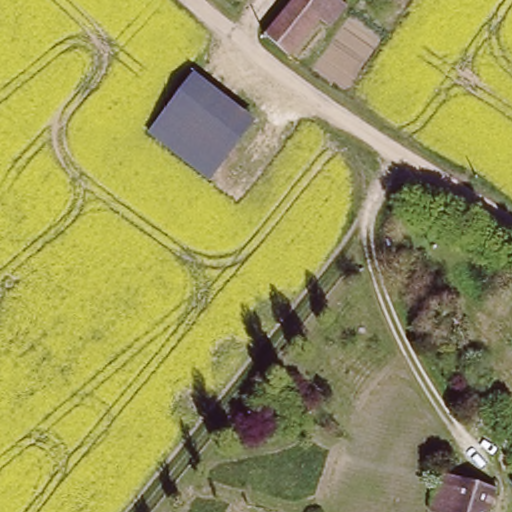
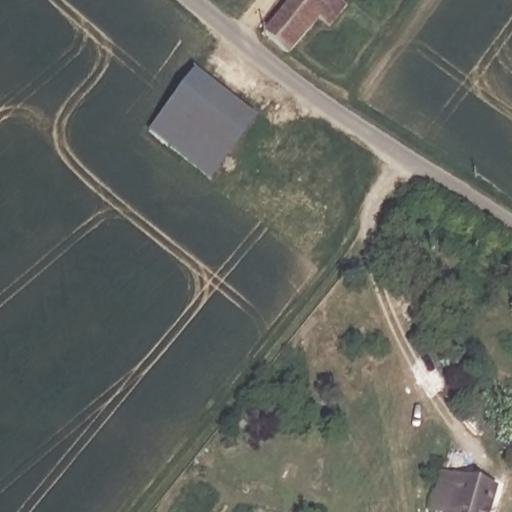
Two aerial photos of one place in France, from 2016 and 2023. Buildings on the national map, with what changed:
unchanged [(290,0),(346,0),(329,24),(320,19),(291,52),(266,30),(290,0)]
unchanged [(216,177),(154,126),(198,72),(260,122),(216,177)]
unchanged [(447,495),(453,472),(501,484),(494,512),(453,512),(456,497),(447,495)]

